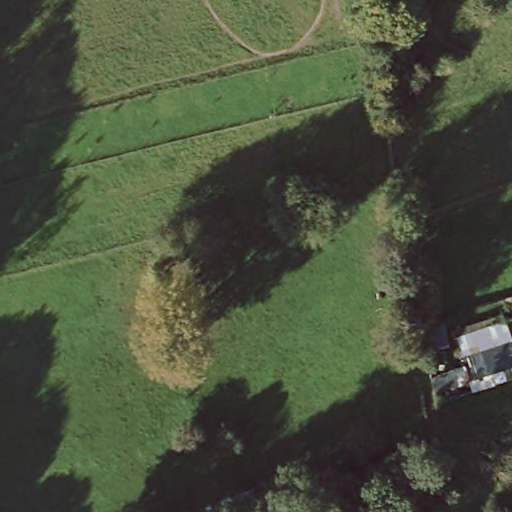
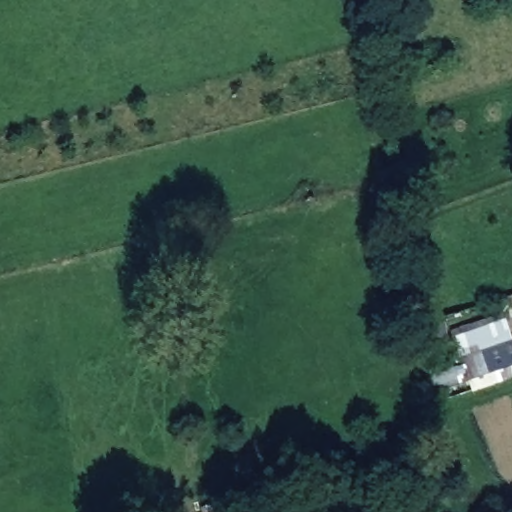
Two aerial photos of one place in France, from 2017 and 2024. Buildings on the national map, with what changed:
unchanged [(512,370),(467,381),(455,329),(511,315),(512,318),(512,370)]

